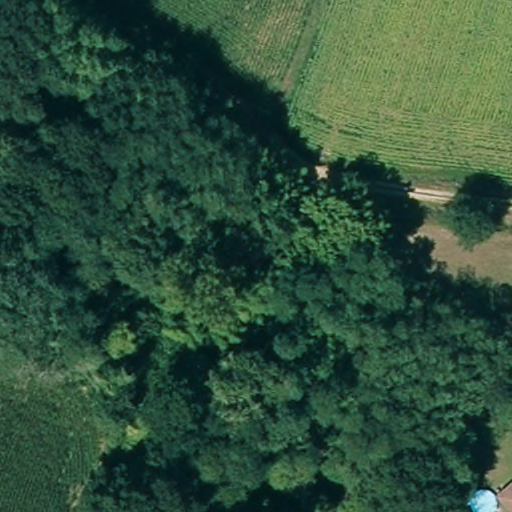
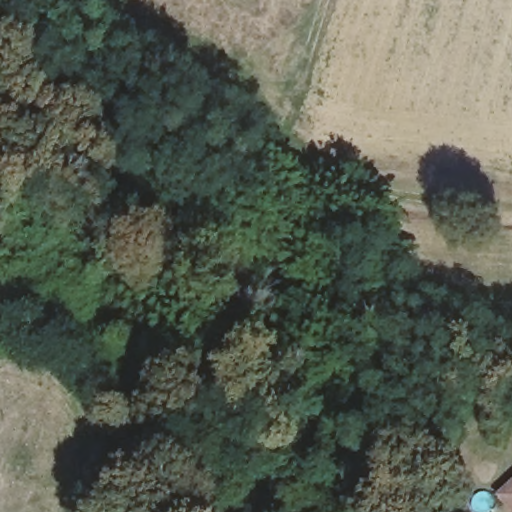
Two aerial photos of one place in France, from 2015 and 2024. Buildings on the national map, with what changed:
unchanged [(512,493),(512,512),(502,502),(512,493)]

